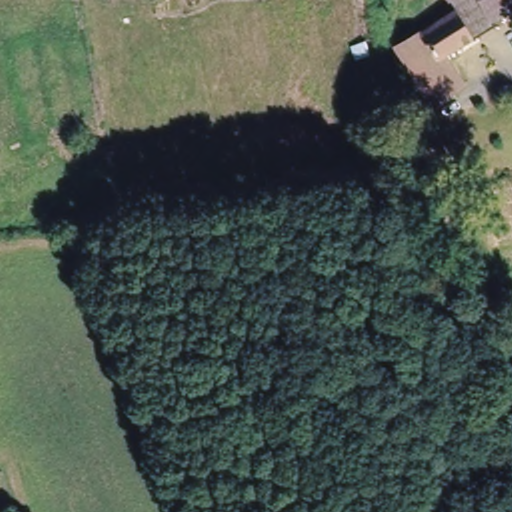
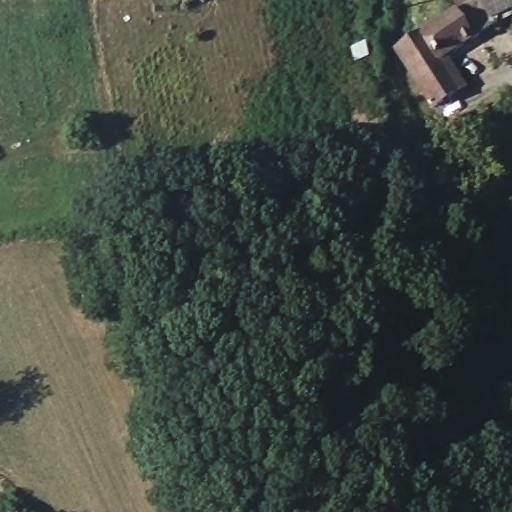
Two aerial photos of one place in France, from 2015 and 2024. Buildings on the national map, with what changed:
unchanged [(430,103),(401,42),(459,11),(456,0),(512,0),(512,9),(494,17),(498,26),(446,52),(462,87),(452,92),(430,103)]

